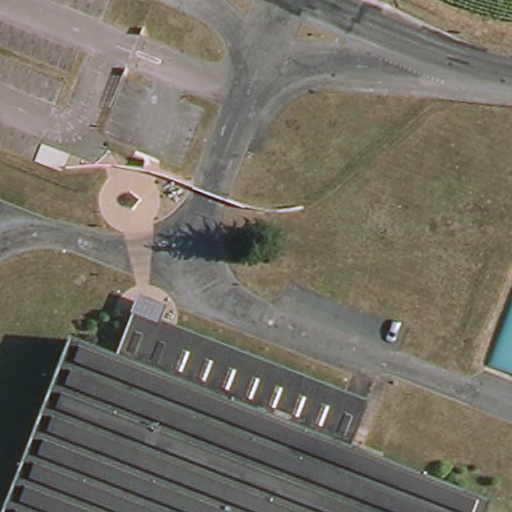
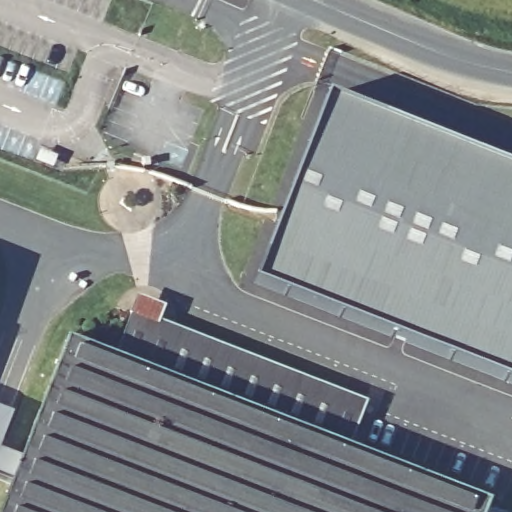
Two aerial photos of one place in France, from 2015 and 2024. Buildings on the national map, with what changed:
new [(512,168),(512,382),(256,283),(327,97),(512,168)]
demolished [(190,166),(184,180),(170,174),(176,160),(190,166)]
unchanged [(122,354),(140,308),(372,397),(355,444),(494,497),(488,512),(7,512),(75,336),(122,354)]
new [(0,450),(0,409),(12,414),(0,450)]
new [(17,486),(0,479),(0,450),(27,461),(17,486)]

